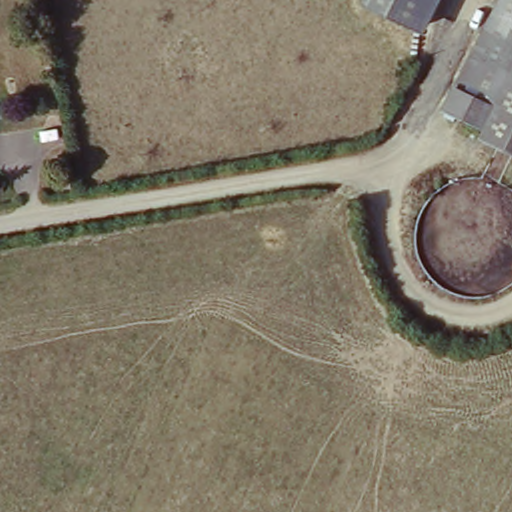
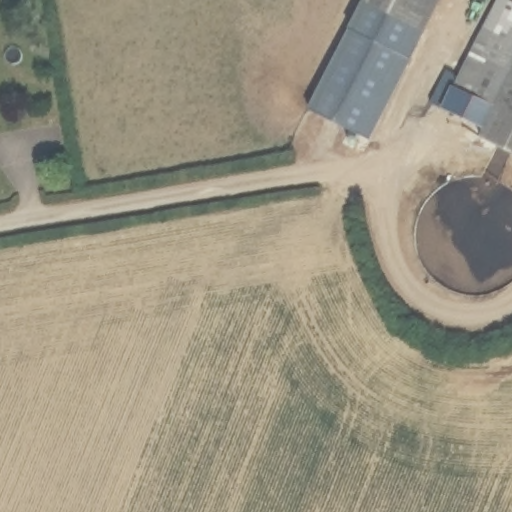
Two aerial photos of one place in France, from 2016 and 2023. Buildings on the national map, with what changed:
unchanged [(440,0),(423,34),(360,1),(361,0),(440,0)]
unchanged [(427,119),(492,0),(496,0),(512,8),(512,53),(465,140),(427,119)]
unchanged [(512,0),(512,8),(496,0),(512,0)]
new [(423,34),(369,140),(308,110),(360,1),(423,34)]
unchanged [(512,181),(459,150),(465,140),(512,53),(512,181)]

